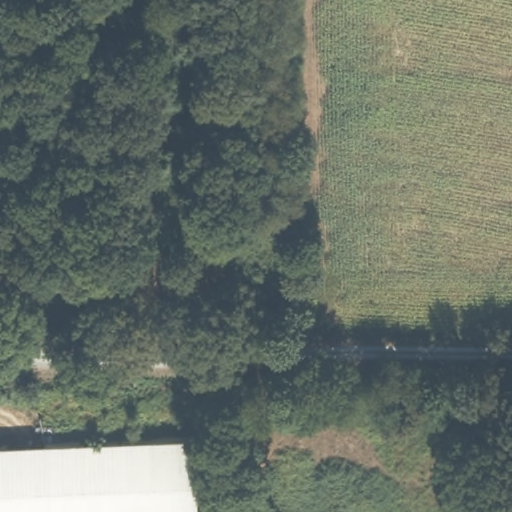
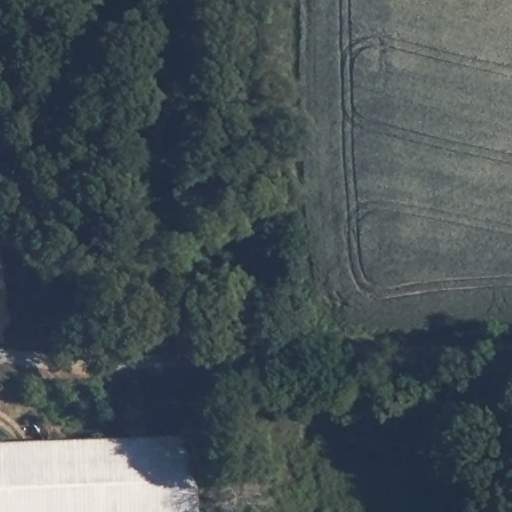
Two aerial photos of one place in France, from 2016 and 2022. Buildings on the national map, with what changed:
unchanged [(0,512),(0,444),(193,439),(196,512),(0,512)]

